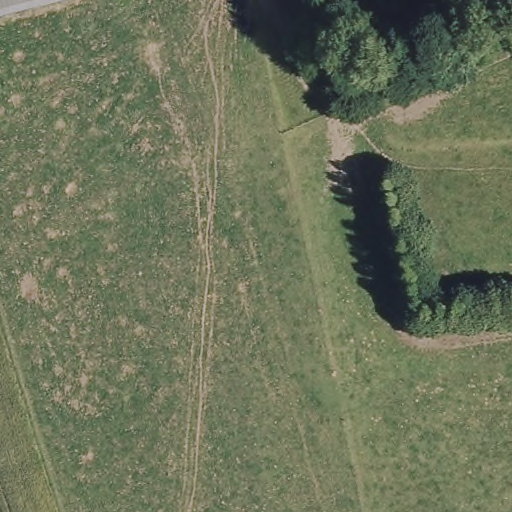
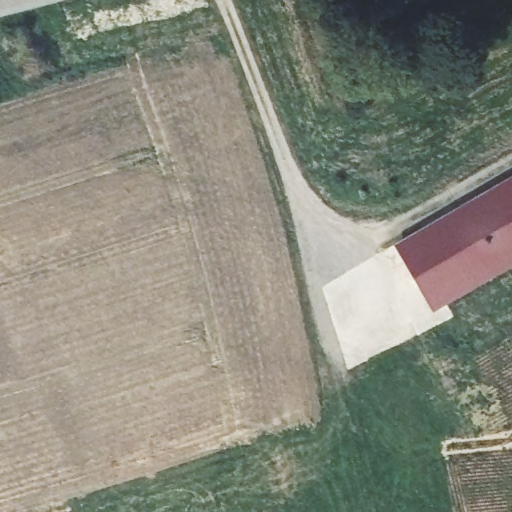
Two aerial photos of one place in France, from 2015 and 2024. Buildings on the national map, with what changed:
unchanged [(0,0),(77,0),(0,21),(0,0)]
new [(394,244),(512,176),(512,268),(434,313),(394,244)]

